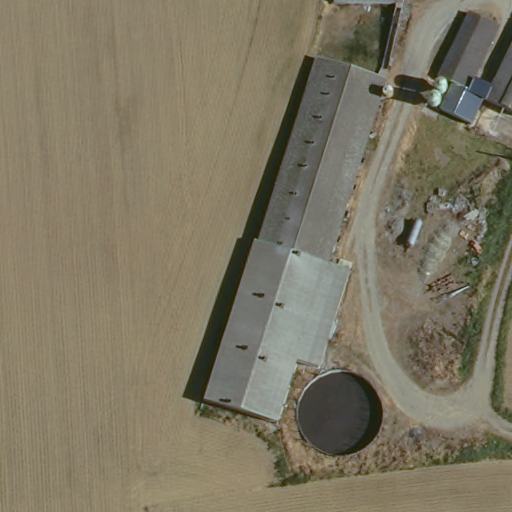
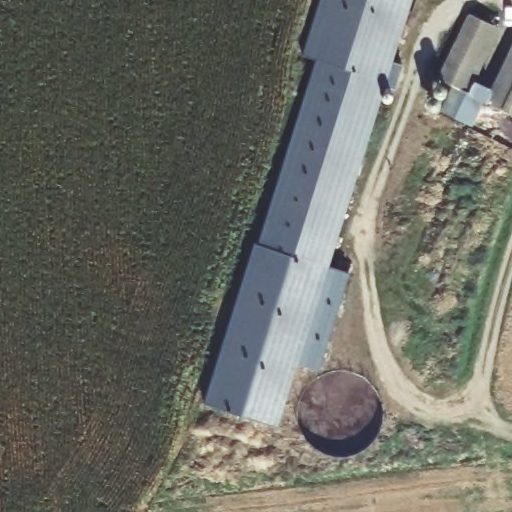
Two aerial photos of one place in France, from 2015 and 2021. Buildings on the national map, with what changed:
new [(302,54),(320,0),(412,0),(389,80),(317,58),(302,54)]
demolished [(338,5),(338,0),(406,0),(405,5),(338,5)]
unchanged [(473,121),(443,107),(456,81),(442,75),(473,10),(501,24),(470,89),(485,96),(473,121)]
unchanged [(490,98),(512,52),(512,108),(490,98)]
unchanged [(332,261),(260,239),(317,58),(389,80),(332,261)]
unchanged [(332,261),(351,274),(320,367),(300,361),(279,420),(205,400),(253,237),(260,239),(332,261)]

